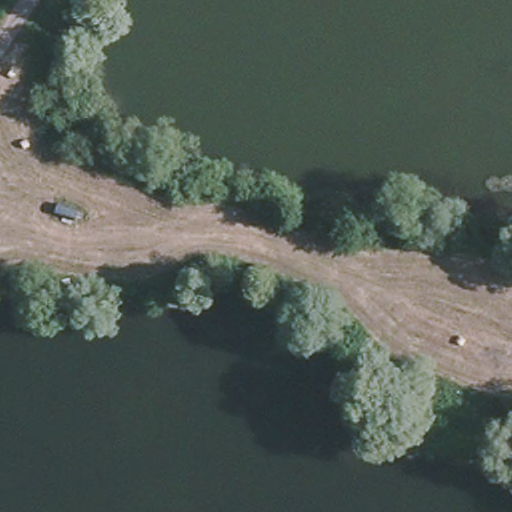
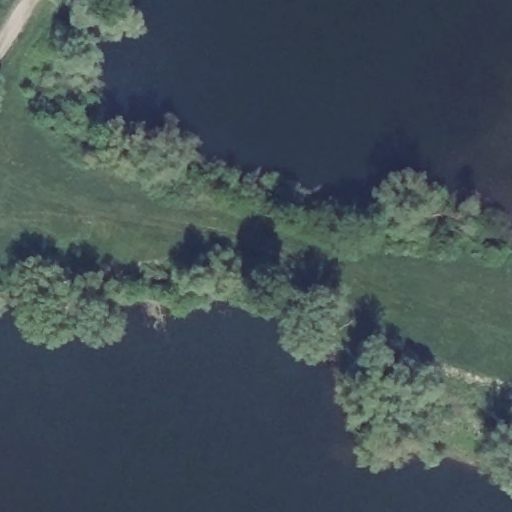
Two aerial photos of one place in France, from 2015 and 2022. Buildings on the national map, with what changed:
unchanged [(79,208),(75,221),(77,222),(72,236),(52,228),(56,215),(53,213),(57,202),(79,208)]

